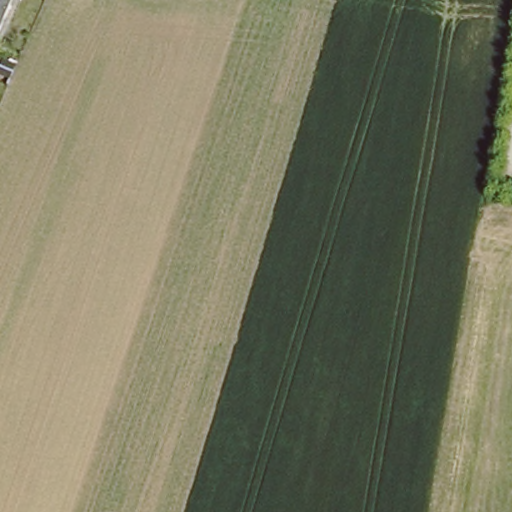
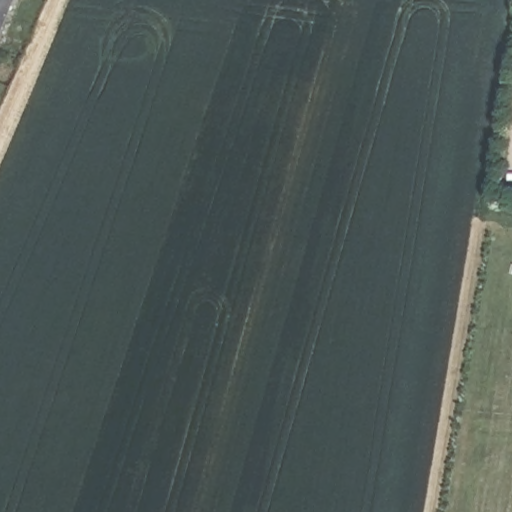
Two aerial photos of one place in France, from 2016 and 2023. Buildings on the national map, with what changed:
unchanged [(0,21),(0,0),(9,0),(0,21)]

